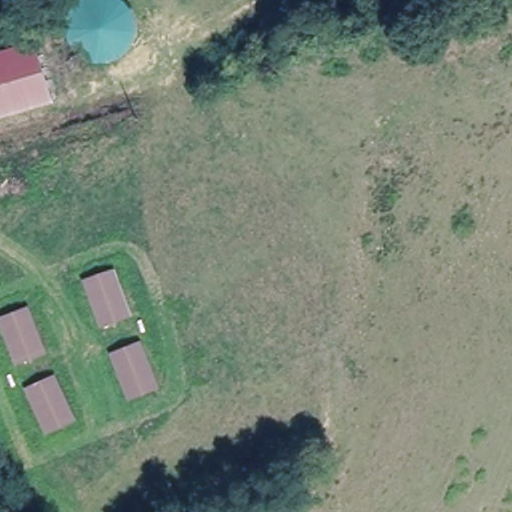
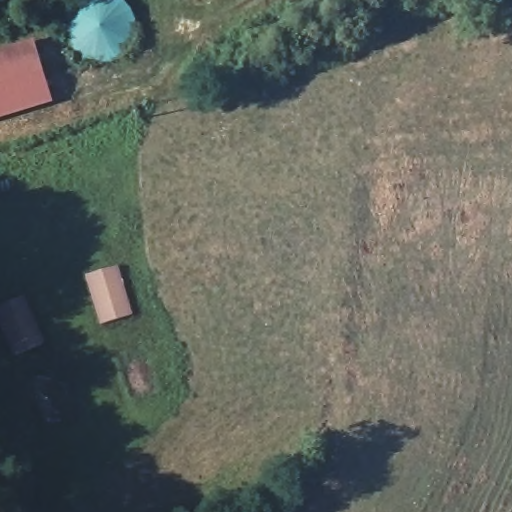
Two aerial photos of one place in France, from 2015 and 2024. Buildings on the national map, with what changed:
unchanged [(130,10),(137,29),(134,42),(126,56),(107,66),(94,66),(80,62),(71,50),(66,37),(66,25),(69,15),(74,7),(83,0),(120,0),(130,10)]
unchanged [(32,47),(49,103),(0,118),(0,56),(32,47)]

